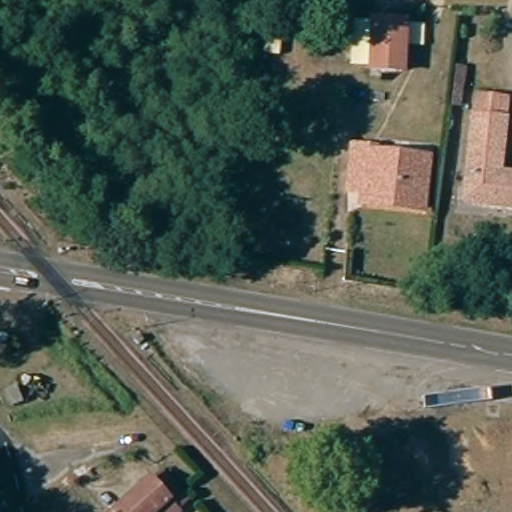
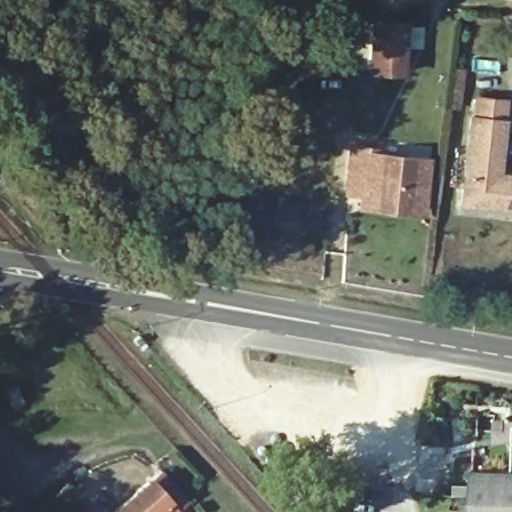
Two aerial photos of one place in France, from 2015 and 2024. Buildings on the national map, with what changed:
unchanged [(376,17),(407,22),(397,73),(364,67),(376,17)]
unchanged [(504,104),(496,176),(512,178),(512,211),(462,205),(476,99),(504,104)]
unchanged [(418,216),(397,214),(398,201),(344,195),(348,149),(363,150),(364,155),(423,162),(418,216)]
unchanged [(145,481),(158,470),(186,498),(173,512),(172,512),(109,512),(145,481)]
new [(474,474),(512,476),(512,512),(473,512),(474,474)]

